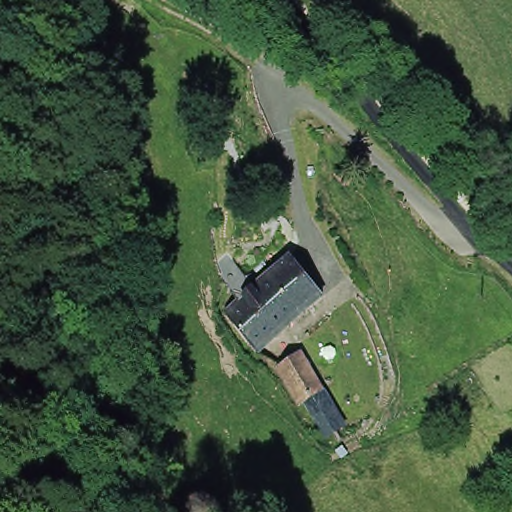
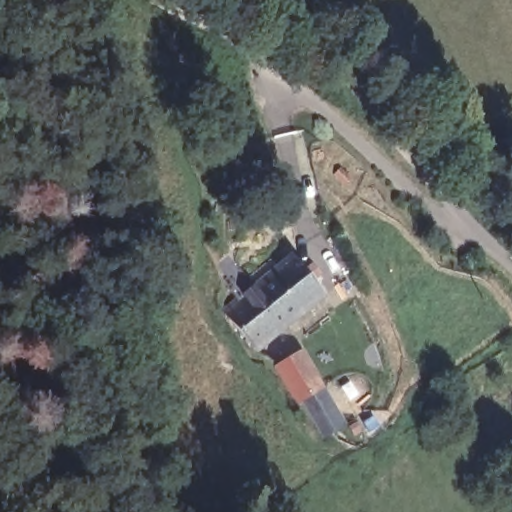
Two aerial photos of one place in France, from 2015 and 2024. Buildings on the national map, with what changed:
unchanged [(296,256),(326,294),(260,349),(228,312),(296,256)]
unchanged [(283,368),(304,354),(326,387),(304,401),(283,368)]

